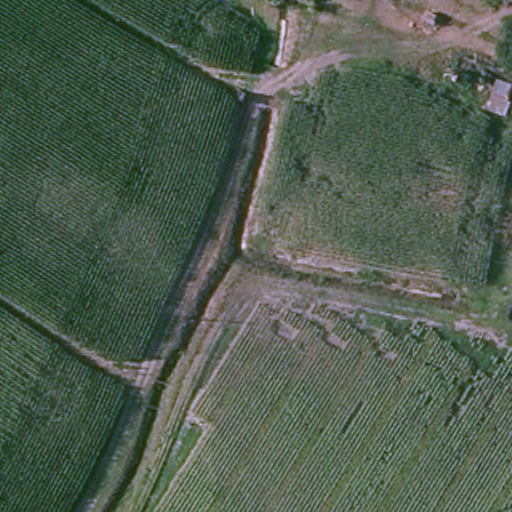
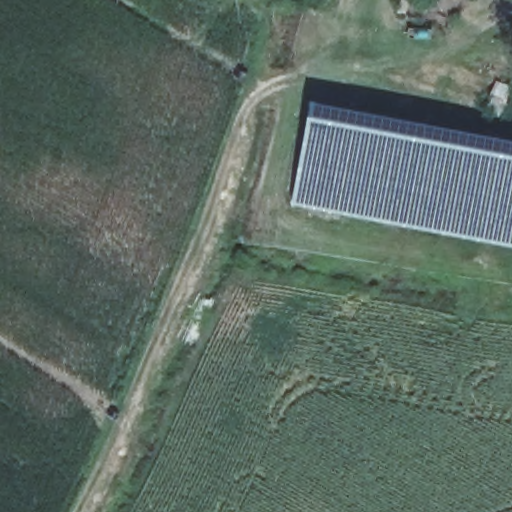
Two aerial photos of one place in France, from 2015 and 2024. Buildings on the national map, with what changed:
new [(485,111),(495,80),(512,86),(502,116),(485,111)]
new [(512,154),(512,248),(290,205),(308,114),(512,154)]

